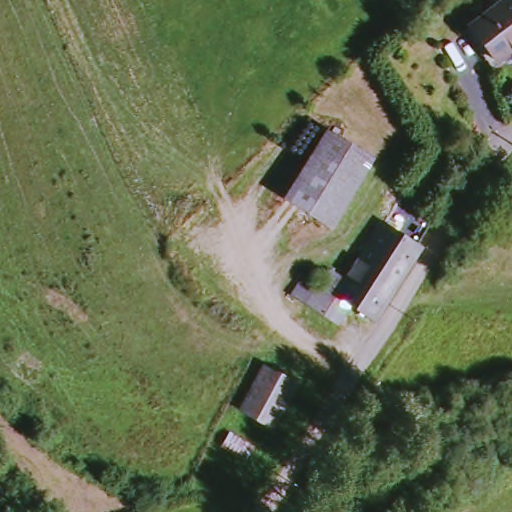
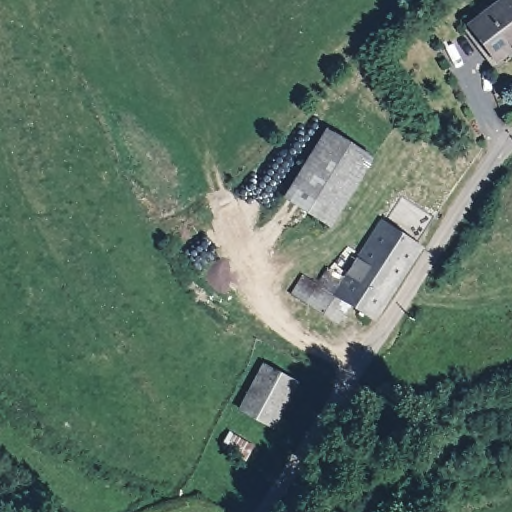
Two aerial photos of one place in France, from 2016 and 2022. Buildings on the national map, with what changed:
unchanged [(474,26),(508,0),(512,0),(512,53),(503,59),(474,26)]
unchanged [(325,122),(392,167),(348,236),(280,192),(325,122)]
unchanged [(346,282),(385,221),(387,223),(405,195),(438,216),(422,242),(426,245),(375,323),(349,306),(337,324),(291,294),(305,272),(319,282),(327,269),(346,282)]
unchanged [(241,412),(264,368),(296,386),(275,430),(241,412)]

